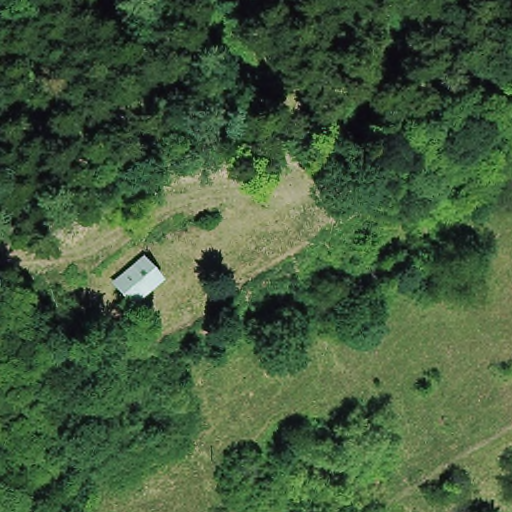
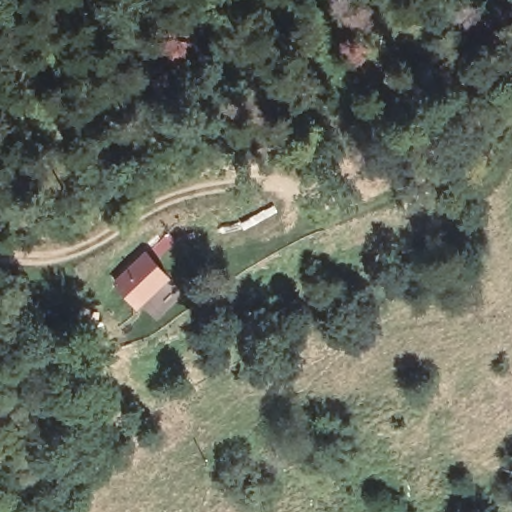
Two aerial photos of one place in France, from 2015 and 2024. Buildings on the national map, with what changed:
unchanged [(116,280),(146,257),(162,278),(146,291),(132,302),(116,280)]

